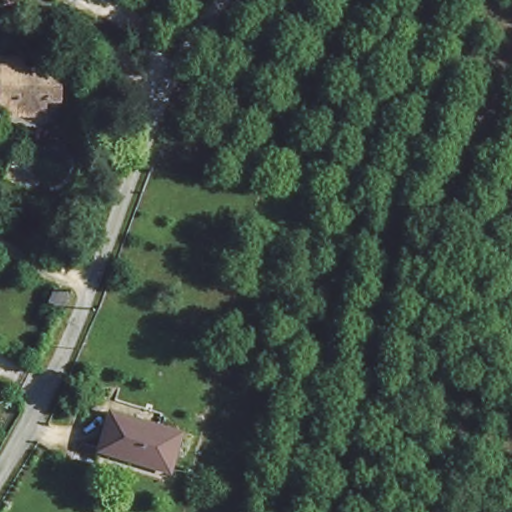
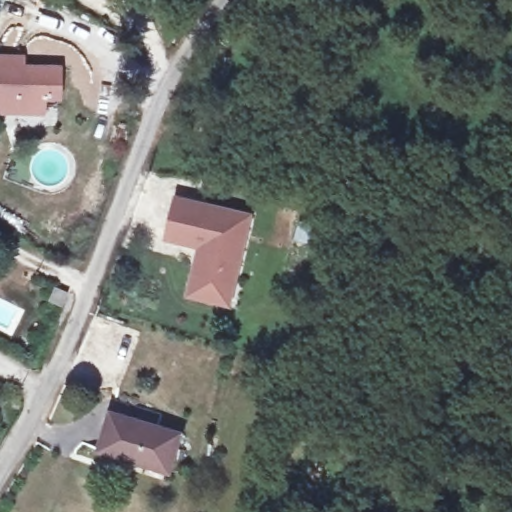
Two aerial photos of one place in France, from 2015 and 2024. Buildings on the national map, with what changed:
unchanged [(3,56),(2,65),(53,66),(52,95),(51,111),(34,111),(14,110),(0,110),(0,55),(3,56)]
new [(174,193),(254,212),(232,306),(187,296),(197,248),(163,240),(174,193)]
unchanged [(64,306),(52,301),(57,287),(69,290),(64,306)]
unchanged [(116,411),(184,433),(172,470),(104,448),(116,411)]

